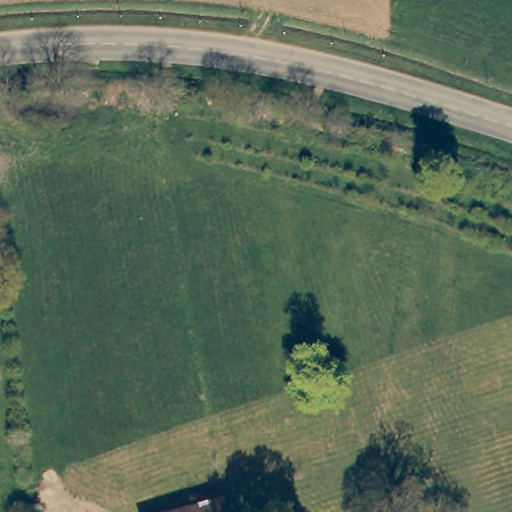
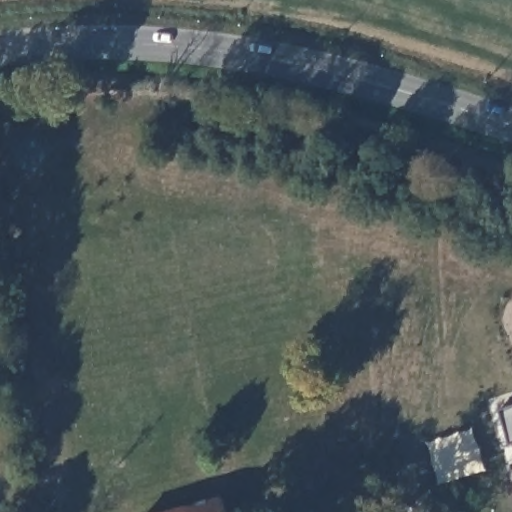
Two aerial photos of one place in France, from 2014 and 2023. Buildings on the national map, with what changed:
new [(512,408),(512,442),(510,443),(500,412),(512,408)]
unchanged [(221,512),(176,512),(217,500),(221,512)]

